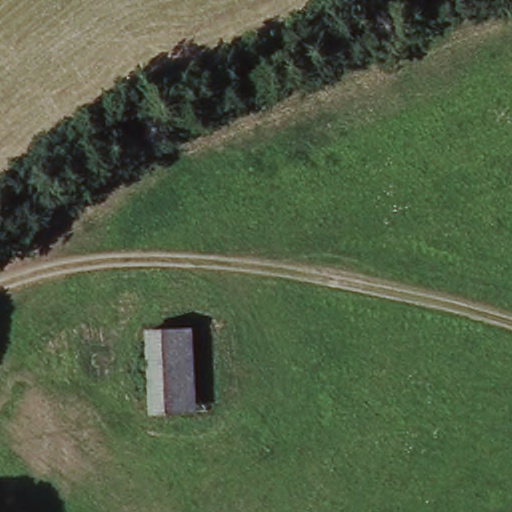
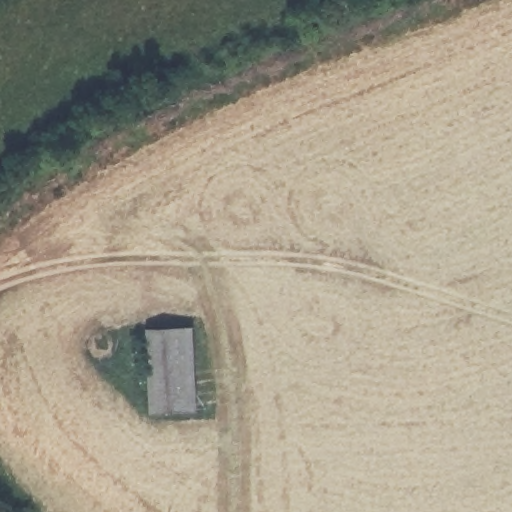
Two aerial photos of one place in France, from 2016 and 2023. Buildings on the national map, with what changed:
unchanged [(12,159),(25,172),(4,190),(0,185),(0,169),(12,159)]
unchanged [(149,414),(151,337),(192,337),(190,415),(149,414)]

